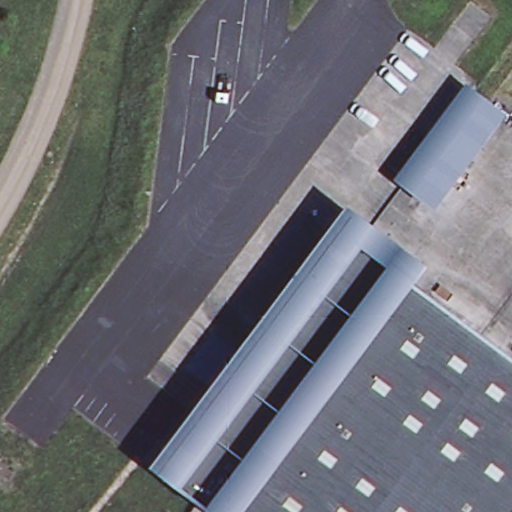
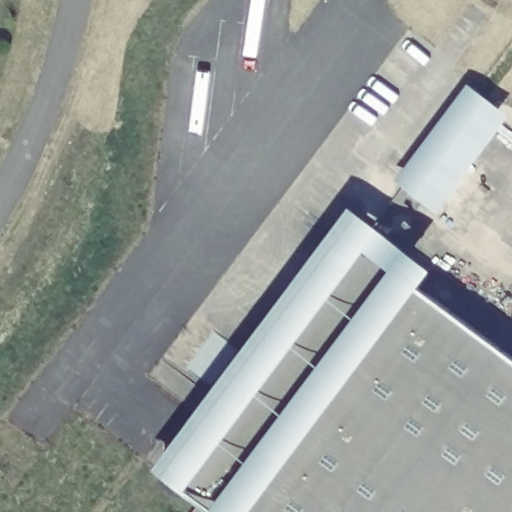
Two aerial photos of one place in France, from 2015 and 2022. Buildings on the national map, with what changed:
unchanged [(470,79),(508,107),(445,207),(400,179),(470,79)]
unchanged [(193,491),(155,462),(185,425),(195,411),(208,420),(211,423),(355,232),(512,350),(512,512),(222,512),(205,500),(196,512),(178,512),(177,511),(193,491)]

